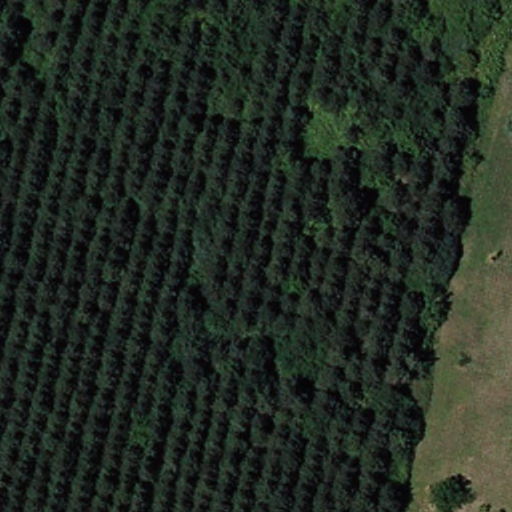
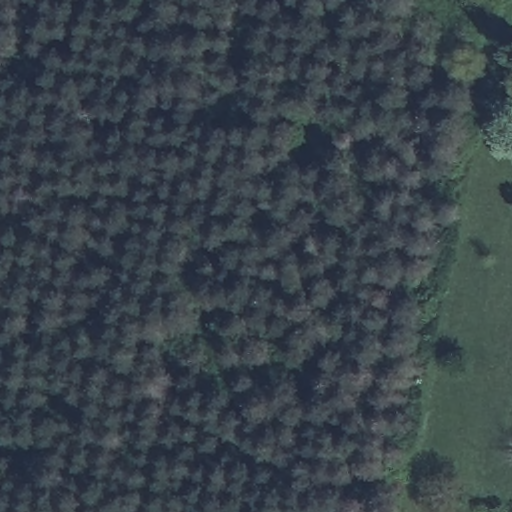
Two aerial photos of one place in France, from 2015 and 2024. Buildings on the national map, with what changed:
[]

